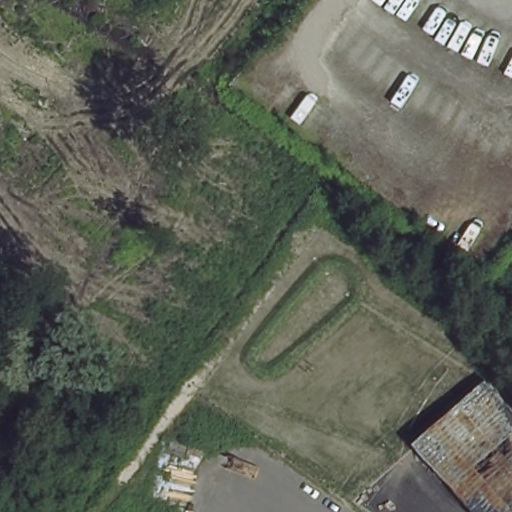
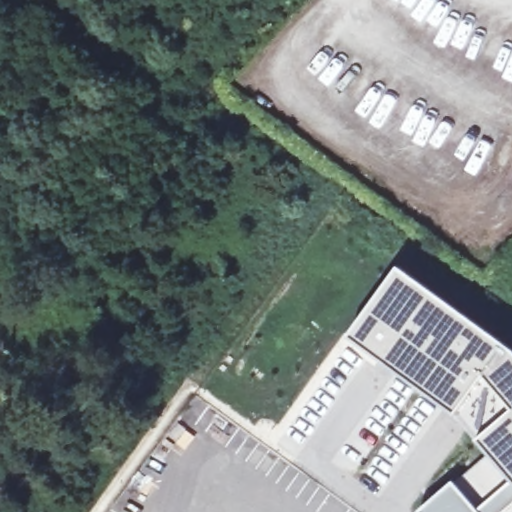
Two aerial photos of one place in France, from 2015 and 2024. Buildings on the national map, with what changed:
new [(490,453),(480,442),(457,416),(351,339),(400,270),(512,352),(512,512),(421,512),(454,485),(490,453)]

